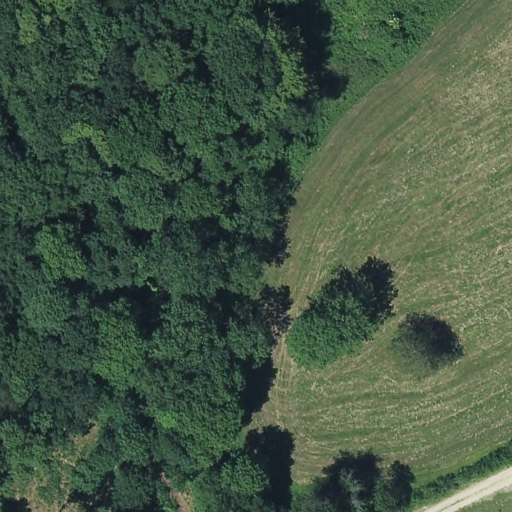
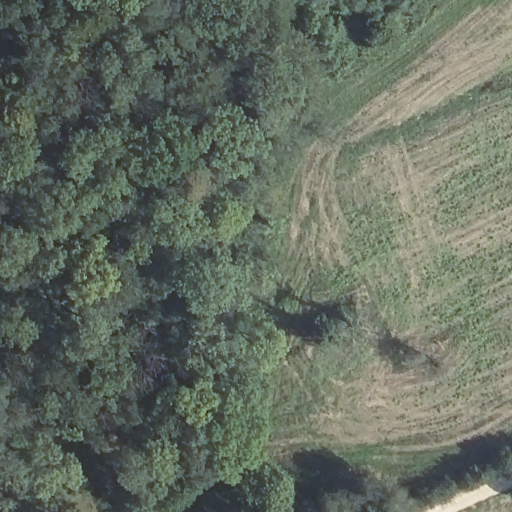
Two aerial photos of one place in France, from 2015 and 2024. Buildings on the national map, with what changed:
[]

